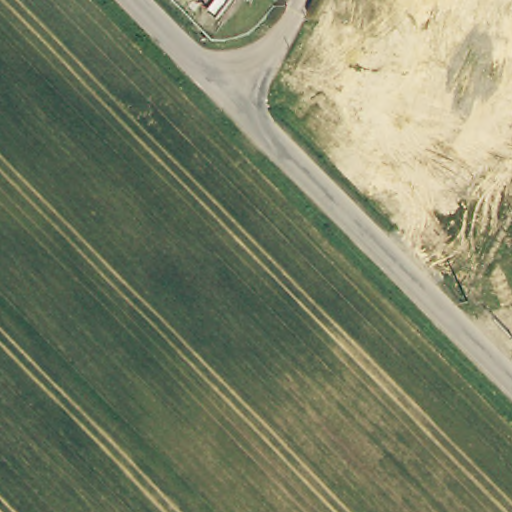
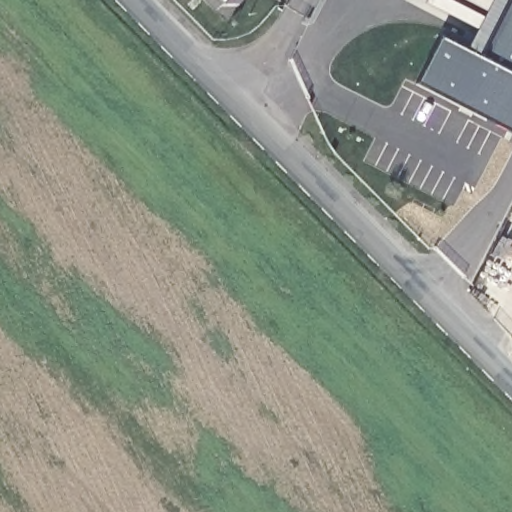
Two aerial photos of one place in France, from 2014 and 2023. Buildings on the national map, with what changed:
new [(440,38),(465,50),(492,0),(512,0),(512,133),(415,84),(440,38)]

